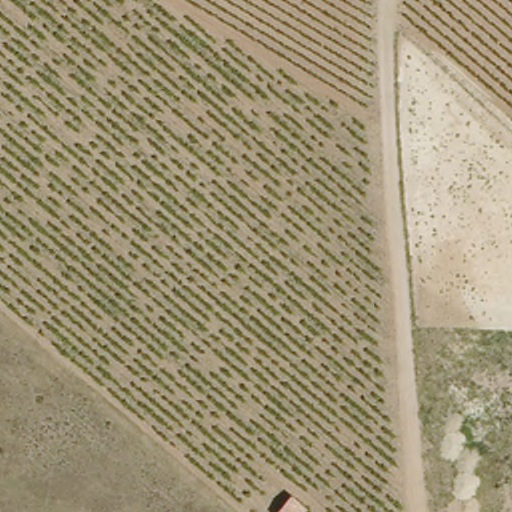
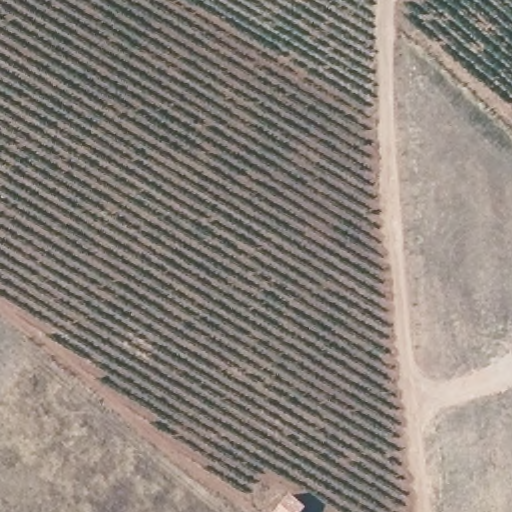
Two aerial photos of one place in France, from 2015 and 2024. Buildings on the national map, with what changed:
unchanged [(303,511),(303,512),(272,512),(286,495),(303,511)]

